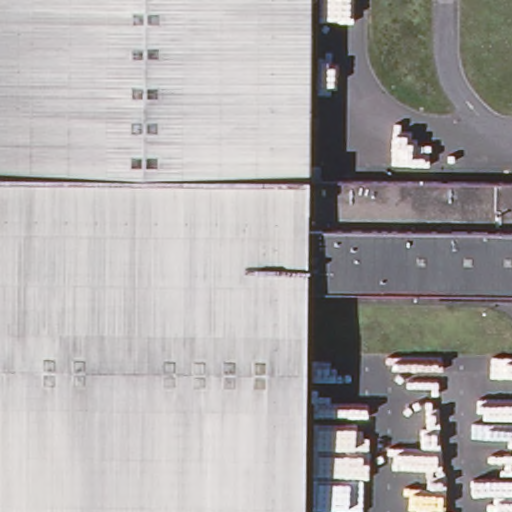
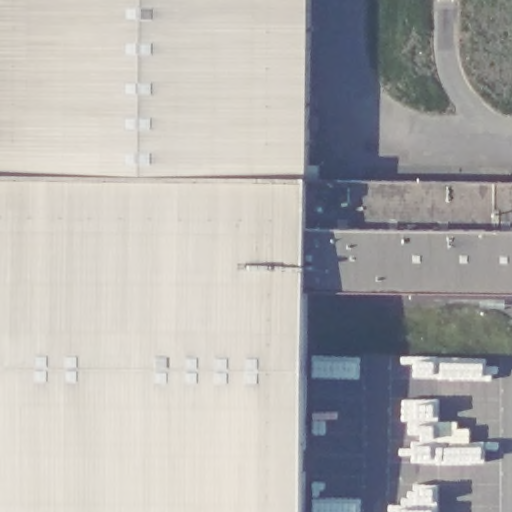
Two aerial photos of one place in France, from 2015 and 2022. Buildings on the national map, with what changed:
unchanged [(318,177),(512,180),(512,290),(308,288),(303,512),(0,512),(0,0),(310,0),(307,177),(318,177)]

